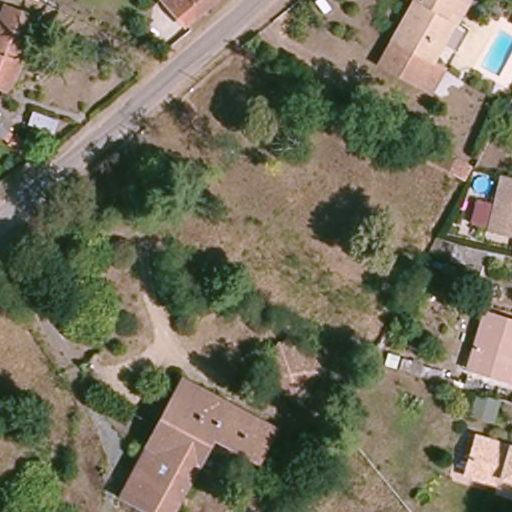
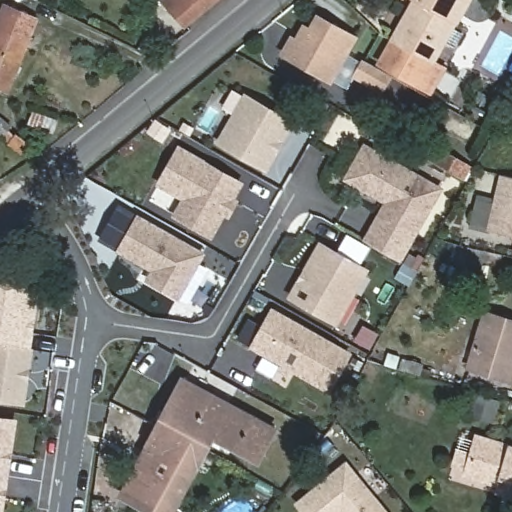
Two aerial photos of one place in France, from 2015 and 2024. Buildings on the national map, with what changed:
unchanged [(127,0),(130,0),(130,1),(127,0)]
unchanged [(161,0),(215,0),(184,26),(161,0)]
unchanged [(416,87),(381,66),(395,42),(412,12),(417,15),(423,5),(414,0),(468,0),(431,62),(430,65),(445,74),(432,97),(416,87)]
unchanged [(0,23),(6,9),(39,23),(33,41),(9,96),(0,93),(0,23)]
new [(316,12),(358,36),(331,85),(280,54),(290,34),(294,37),(303,22),(309,26),(316,12)]
new [(365,62),(391,77),(382,92),(356,76),(365,62)]
new [(265,169),(220,142),(245,96),(291,122),(265,169)]
unchanged [(58,121),(53,134),(29,125),(34,111),(58,121)]
unchanged [(11,144),(3,137),(0,135),(0,119),(10,128),(8,131),(16,137),(30,148),(25,155),(11,144)]
new [(342,179),(363,142),(443,187),(400,262),(362,239),(382,202),(342,179)]
new [(211,235),(179,215),(188,199),(160,182),(179,148),(240,182),(211,235)]
unchanged [(512,177),(512,234),(491,229),(504,175),(512,177)]
new [(179,301),(144,281),(149,271),(115,251),(136,212),(205,252),(179,301)]
new [(319,241),(369,268),(336,326),(286,297),(319,241)]
new [(29,346),(0,342),(0,286),(37,292),(29,346)]
new [(249,347),(272,307),(352,352),(330,392),(291,371),(288,377),(276,370),(279,365),(249,347)]
unchanged [(485,316),(512,324),(512,374),(510,382),(468,369),(485,316)]
demolished [(278,344),(283,347),(290,337),(323,358),(316,368),(321,372),(300,405),(257,377),(278,344)]
new [(0,400),(0,343),(33,347),(25,403),(0,400)]
unchanged [(185,383),(274,431),(258,460),(212,437),(172,512),(151,512),(124,497),(185,383)]
unchanged [(475,395),(501,402),(494,426),(468,417),(475,395)]
new [(10,477),(0,476),(0,421),(18,424),(10,477)]
unchanged [(469,476),(480,438),(512,448),(512,496),(501,493),(503,486),(469,476)]
new [(294,502),(346,461),(387,512),(302,512),(294,502)]
new [(5,512),(0,512),(0,476),(10,477),(5,512)]

